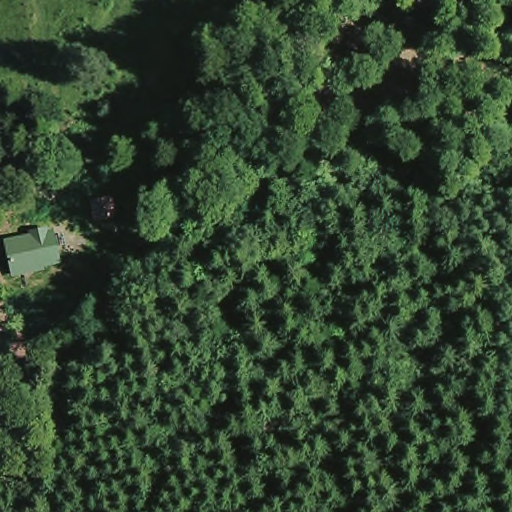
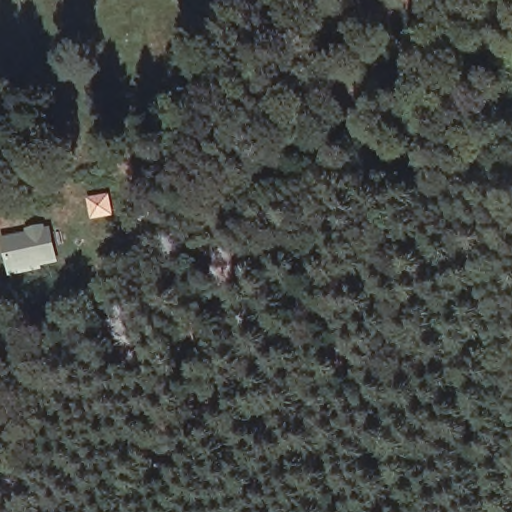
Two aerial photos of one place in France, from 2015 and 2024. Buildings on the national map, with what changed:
unchanged [(11,278),(3,239),(28,234),(28,231),(48,227),(48,230),(53,229),(60,264),(43,268),(44,271),(11,278)]

